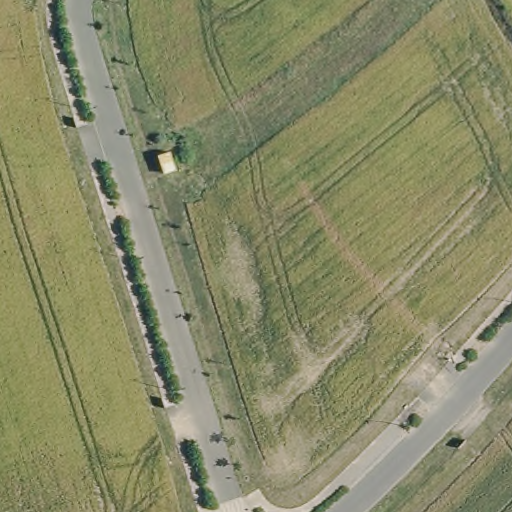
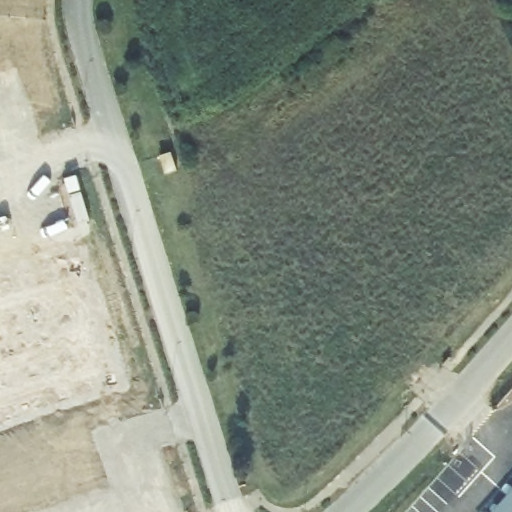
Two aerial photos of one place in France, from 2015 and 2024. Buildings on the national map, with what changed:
new [(512,512),(493,512),(512,490),(512,512)]

